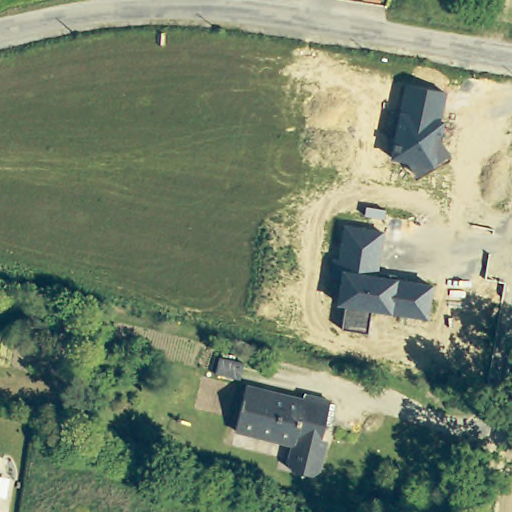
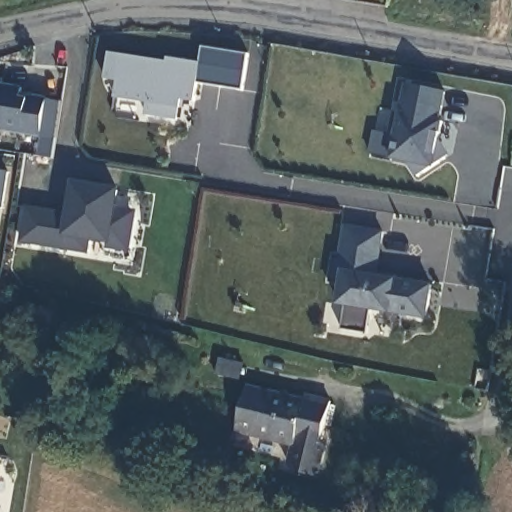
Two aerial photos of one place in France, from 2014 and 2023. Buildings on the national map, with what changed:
new [(167,61),(167,57),(200,63),(203,47),(247,55),(241,90),(197,83),(195,102),(182,100),(181,108),(179,107),(179,120),(145,115),(148,103),(113,98),(116,81),(105,79),(109,53),(167,61)]
new [(41,137),(1,131),(2,126),(0,125),(0,84),(22,88),(22,94),(47,98),(60,101),(52,158),(38,155),(41,137)]
unchanged [(404,85),(447,92),(441,120),(444,121),(440,139),(451,155),(433,167),(415,177),(406,162),(390,159),(404,85)]
new [(4,209),(0,208),(0,171),(10,173),(4,209)]
new [(118,207),(137,210),(132,252),(107,249),(109,244),(92,242),(90,255),(17,244),(24,205),(66,210),(71,181),(120,189),(118,207)]
unchanged [(339,259),(345,225),(384,231),(377,275),(433,285),(427,320),(370,310),(367,334),(340,329),(345,306),(335,304),(339,278),(328,276),(332,259),(339,259)]
unchanged [(299,394),(301,388),(326,394),(316,440),(320,445),(315,465),(309,469),(288,464),(285,458),(290,439),(232,426),(242,381),(299,394)]

